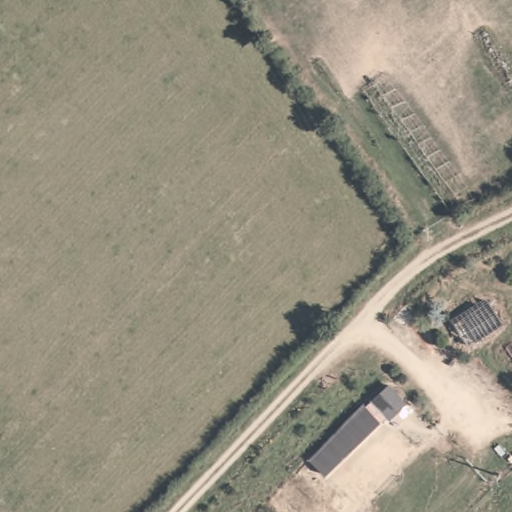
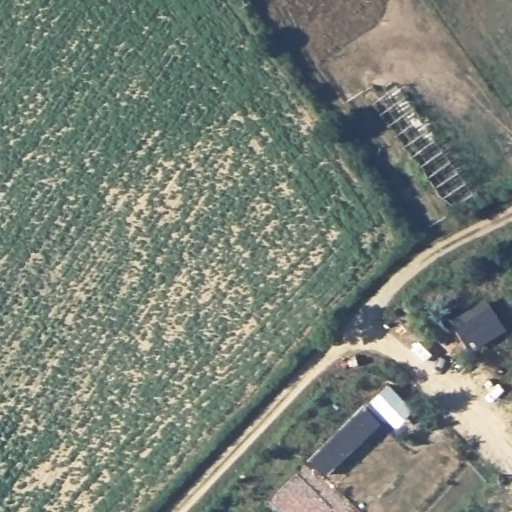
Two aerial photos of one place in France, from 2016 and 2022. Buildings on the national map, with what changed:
unchanged [(408,400),(389,419),(372,401),(390,382),(408,400)]
unchanged [(381,421),(326,476),(308,457),(362,403),(381,421)]

